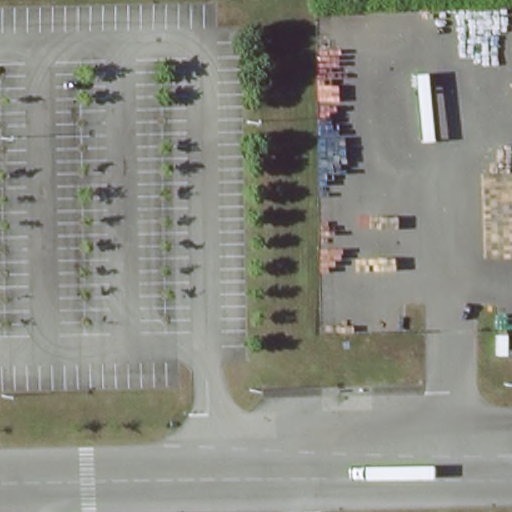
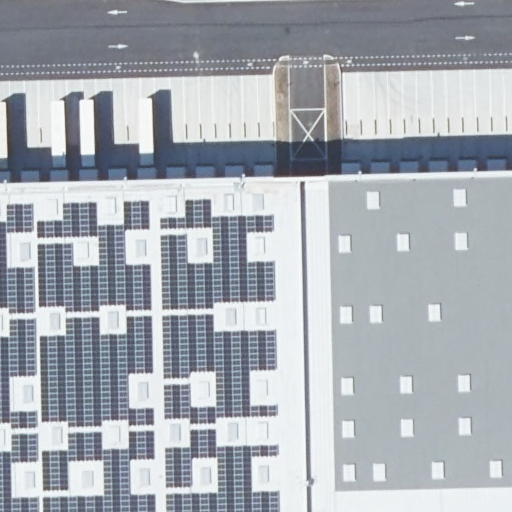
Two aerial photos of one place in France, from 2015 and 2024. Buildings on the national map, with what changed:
demolished [(387,185),(339,184),(339,107),(348,105),(349,68),(396,69),(395,124),(388,123),(387,185)]
new [(512,68),(512,134),(342,139),(341,70),(512,68)]
new [(0,185),(32,183),(302,177),(512,171),(512,512),(0,512),(0,185)]

